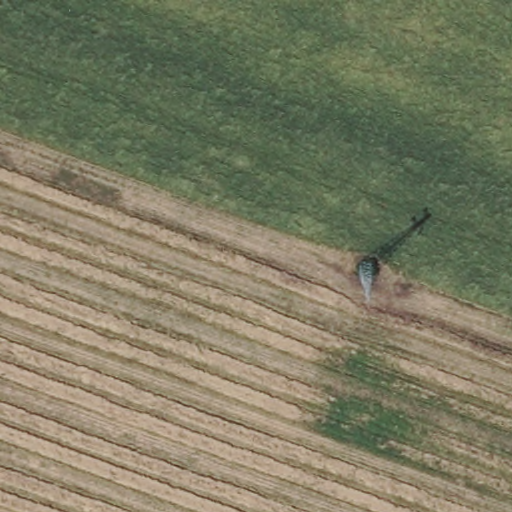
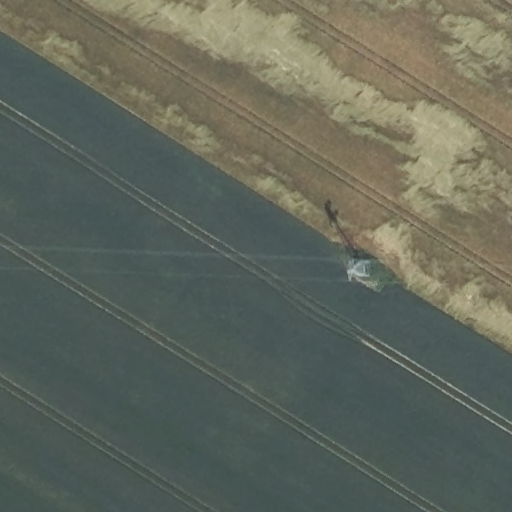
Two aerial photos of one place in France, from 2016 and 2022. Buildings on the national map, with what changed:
[]

